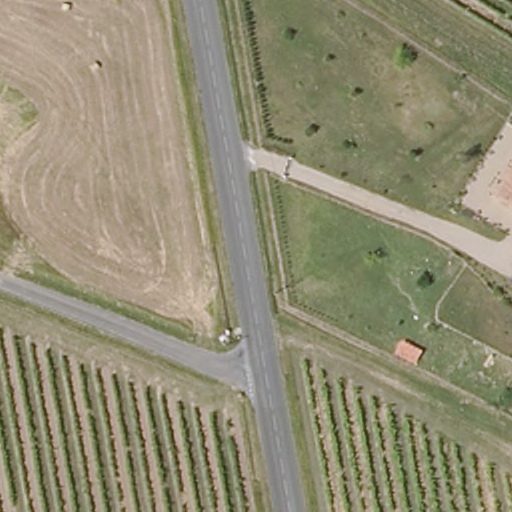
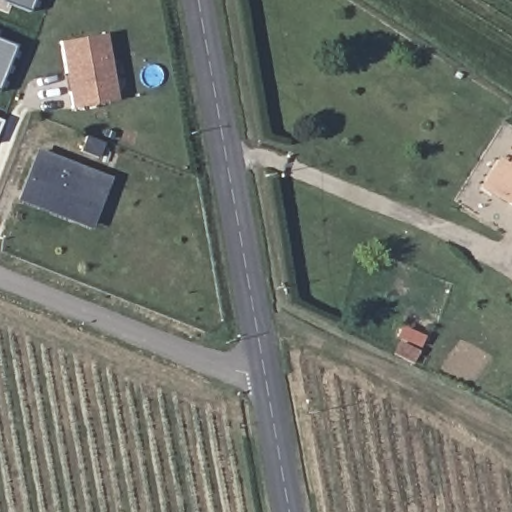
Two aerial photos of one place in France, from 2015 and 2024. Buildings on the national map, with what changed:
new [(0,0),(36,0),(32,11),(0,0)]
new [(72,109),(59,43),(106,33),(119,100),(72,109)]
new [(0,93),(0,41),(18,48),(0,93)]
new [(91,230),(16,200),(35,148),(110,177),(91,230)]
unchanged [(511,161),(512,159),(512,198),(501,192),(496,188),(511,161)]

